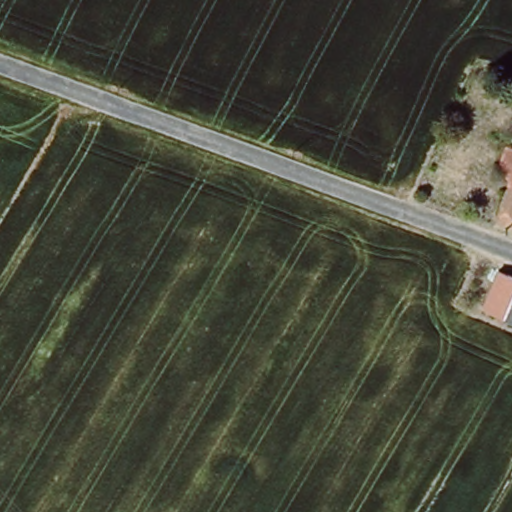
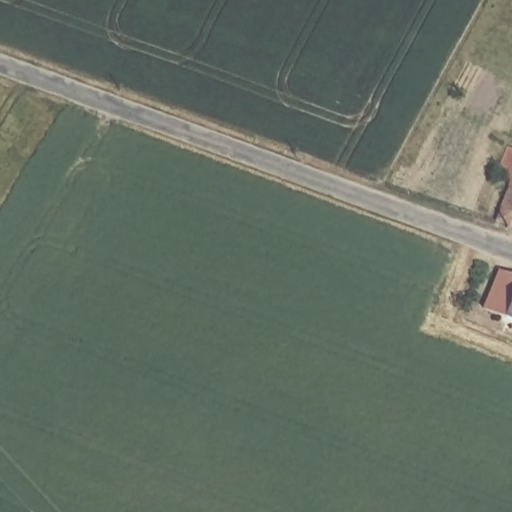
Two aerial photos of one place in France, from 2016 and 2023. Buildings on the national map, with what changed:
unchanged [(495,172),(507,144),(512,147),(512,179),(495,172)]
unchanged [(497,217),(512,181),(512,224),(497,217)]
unchanged [(484,304),(499,268),(512,274),(512,316),(484,304)]

